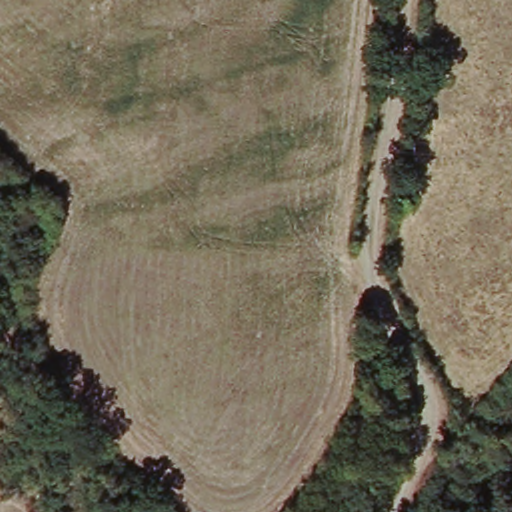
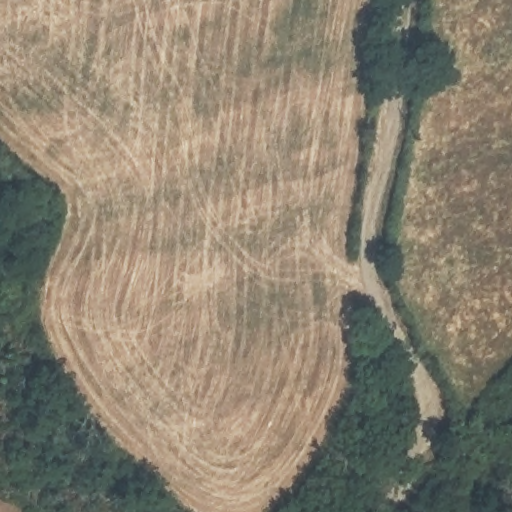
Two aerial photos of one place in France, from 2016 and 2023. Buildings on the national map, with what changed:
[]

